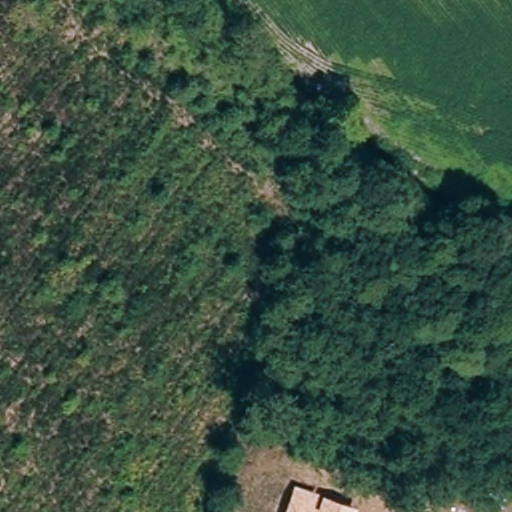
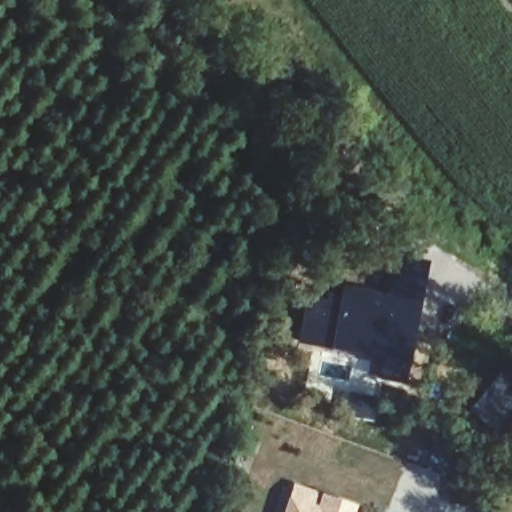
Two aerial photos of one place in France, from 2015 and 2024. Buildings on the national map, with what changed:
new [(328,306),(331,296),(342,298),(344,289),(389,299),(393,286),(421,291),(415,323),(409,322),(403,349),(408,350),(402,381),(383,376),(386,355),(379,354),(380,345),(345,339),(342,349),(300,341),(308,300),(328,306)]
unchanged [(295,484),(317,491),(313,505),(318,507),(322,493),(359,505),(357,512),(285,512),(290,497),(295,484)]

